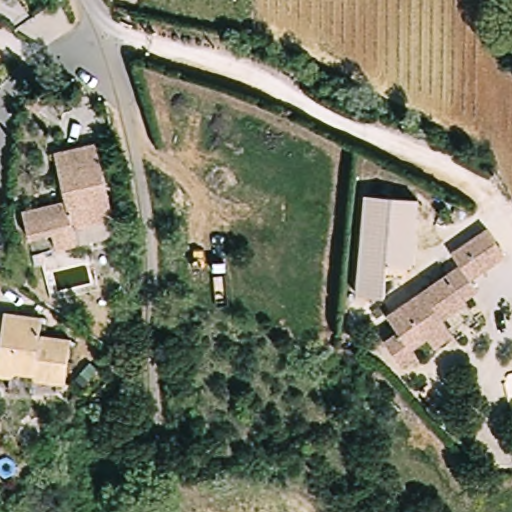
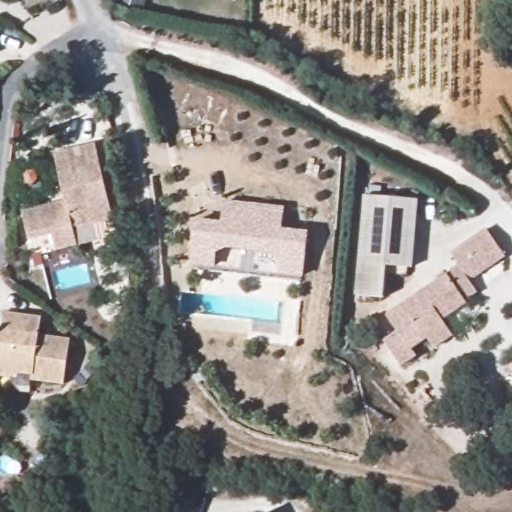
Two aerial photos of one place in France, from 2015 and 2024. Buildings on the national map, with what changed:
unchanged [(32,233),(28,205),(72,196),(63,148),(100,141),(120,234),(61,246),(57,228),(32,233)]
unchanged [(417,197),(415,262),(390,261),(388,297),(360,296),(365,194),(417,197)]
new [(282,260),(273,253),(226,249),(219,255),(217,267),(192,265),(197,220),(223,223),(226,201),(286,208),(284,229),(310,232),(306,276),(280,274),(282,260)]
unchanged [(464,262),(456,248),(492,225),(509,254),(473,277),(480,288),(467,296),(469,298),(442,314),(454,334),(442,342),(437,334),(416,348),(419,354),(401,365),(385,338),(399,330),(388,312),(464,262)]
unchanged [(22,364),(14,373),(1,370),(4,354),(0,348),(0,341),(7,339),(14,307),(49,312),(46,333),(76,338),(68,383),(35,378),(37,366),(22,364)]

